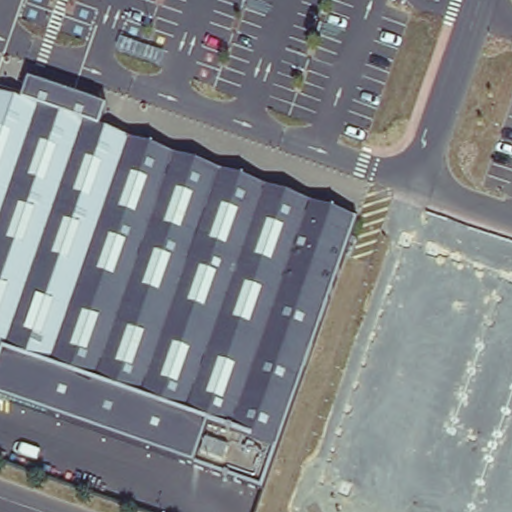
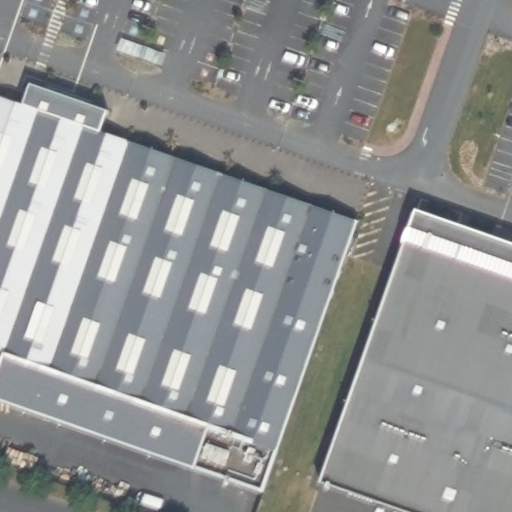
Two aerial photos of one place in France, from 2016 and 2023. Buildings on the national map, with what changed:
unchanged [(22,104),(30,82),(109,108),(102,132),(357,220),(262,489),(195,468),(0,400),(0,96),(22,104)]
new [(512,241),(512,273),(407,235),(417,206),(512,241)]
new [(512,273),(512,512),(408,512),(317,479),(407,235),(512,273)]

